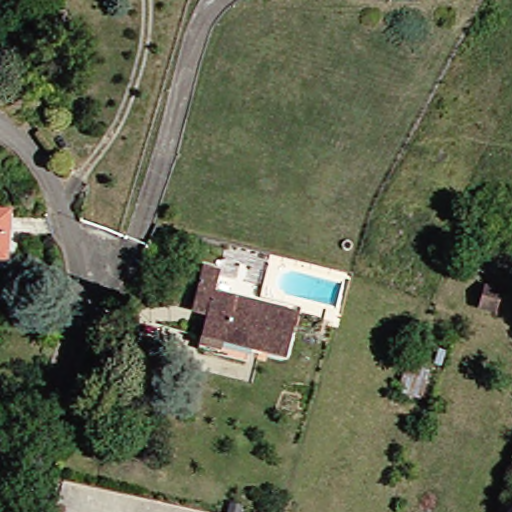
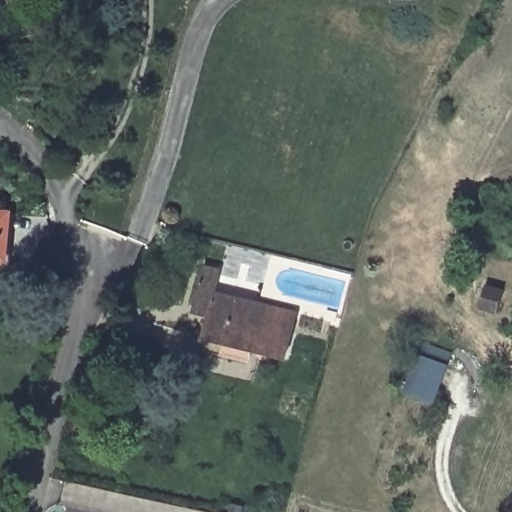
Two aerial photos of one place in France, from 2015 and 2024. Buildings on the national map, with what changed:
unchanged [(2,218),(0,251),(0,218),(2,218)]
unchanged [(216,271),(211,295),(292,315),(283,354),(247,346),(242,364),(194,353),(202,317),(187,314),(189,306),(198,267),(216,271)]
new [(434,404),(403,393),(417,355),(448,366),(434,404)]

